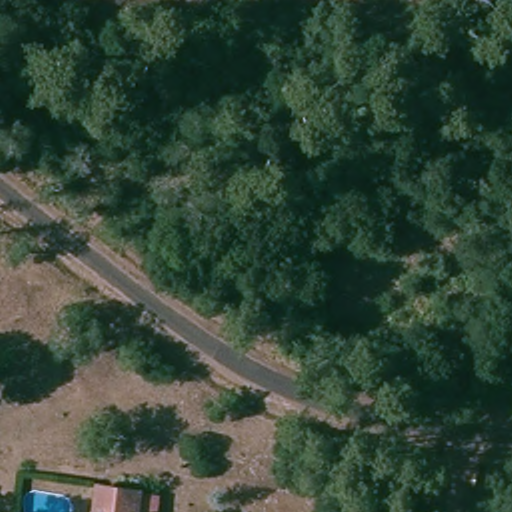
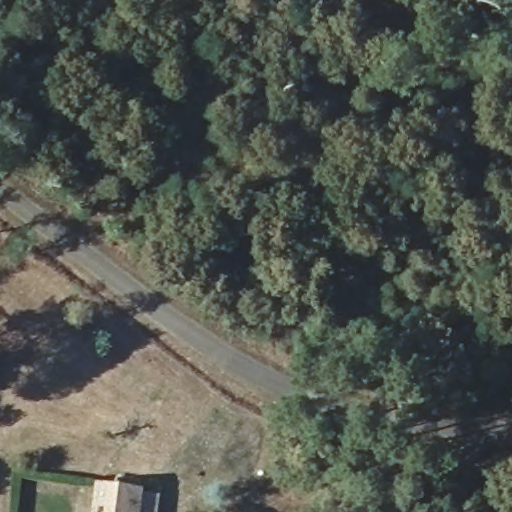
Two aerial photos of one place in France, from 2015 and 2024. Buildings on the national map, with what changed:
unchanged [(161,512),(96,512),(103,478),(146,490),(165,495),(161,512)]

